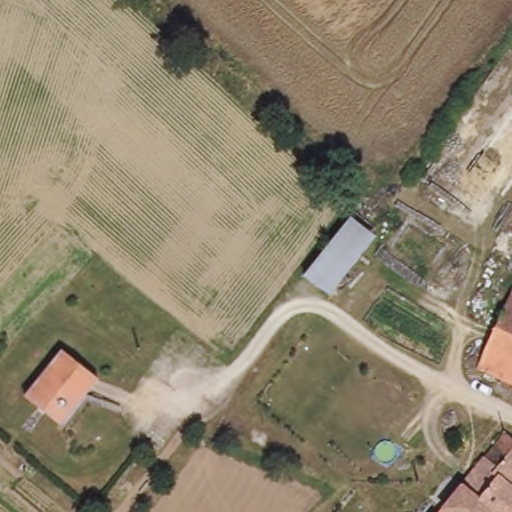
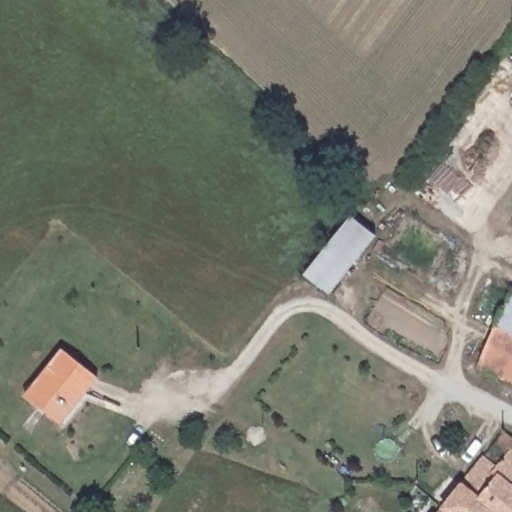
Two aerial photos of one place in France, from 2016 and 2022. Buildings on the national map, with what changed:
unchanged [(309,275),(372,198),(392,215),(384,224),(329,293),(309,275)]
unchanged [(512,297),(512,383),(479,368),(512,297)]
unchanged [(97,378),(59,426),(23,397),(63,350),(97,378)]
unchanged [(512,512),(444,512),(443,511),(508,433),(512,436),(512,512)]
unchanged [(444,512),(443,512),(443,511),(444,512)]

